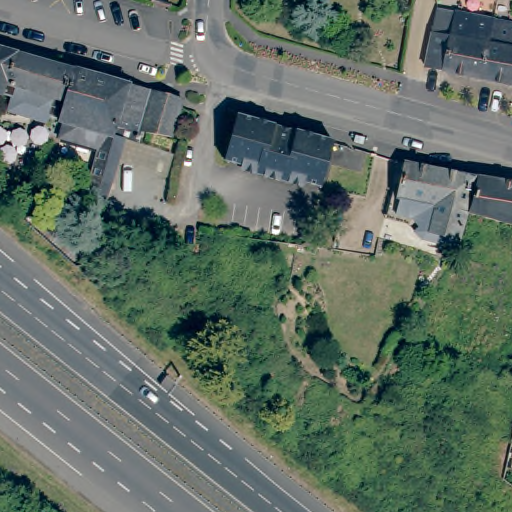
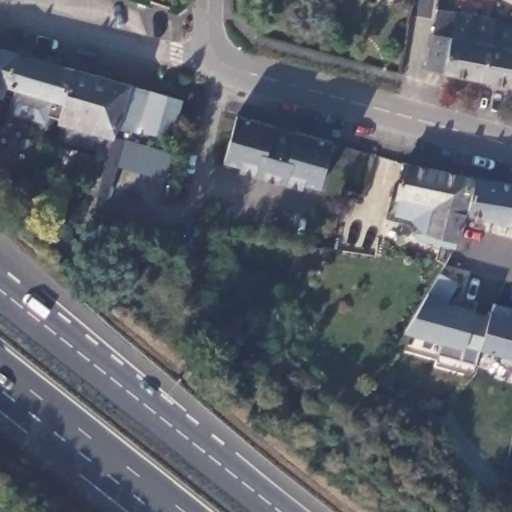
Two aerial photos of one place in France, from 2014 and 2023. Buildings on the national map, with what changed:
unchanged [(444,72),(426,69),(432,34),(437,11),(456,14),(493,21),(512,25),(512,86),(482,80),(444,72)]
unchanged [(72,65),(71,68),(58,113),(57,115),(47,112),(45,119),(7,109),(11,96),(0,92),(0,45),(72,65)]
unchanged [(86,187),(89,177),(98,144),(76,137),(59,132),(63,120),(56,117),(57,115),(58,113),(71,68),(72,65),(182,95),(171,133),(141,128),(139,141),(123,137),(120,147),(109,182),(106,194),(86,187)]
unchanged [(332,142),(319,189),(286,179),(285,183),(255,175),(256,171),(224,162),(236,116),(332,142)]
unchanged [(395,220),(398,205),(395,204),(403,169),(473,182),(457,246),(426,238),(414,224),(395,220)]
unchanged [(477,183),(512,189),(512,231),(467,219),(477,183)]
unchanged [(213,249),(226,261),(236,252),(257,270),(216,318),(182,287),(213,249)]
new [(459,285),(450,304),(490,316),(491,311),(512,317),(512,360),(480,351),(475,363),(439,354),(442,345),(405,334),(430,292),(440,274),(459,285)]
unchanged [(512,437),(512,442),(511,442),(512,437)]

